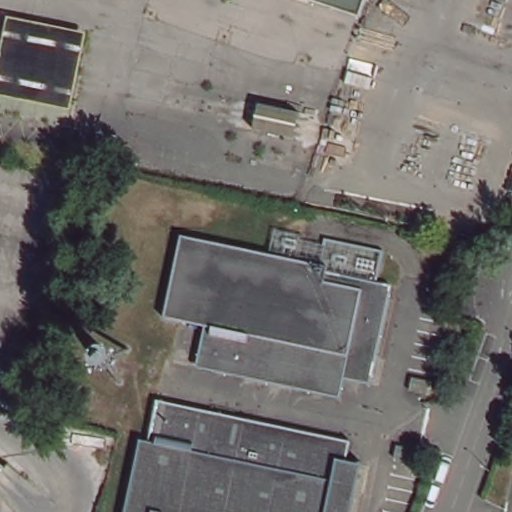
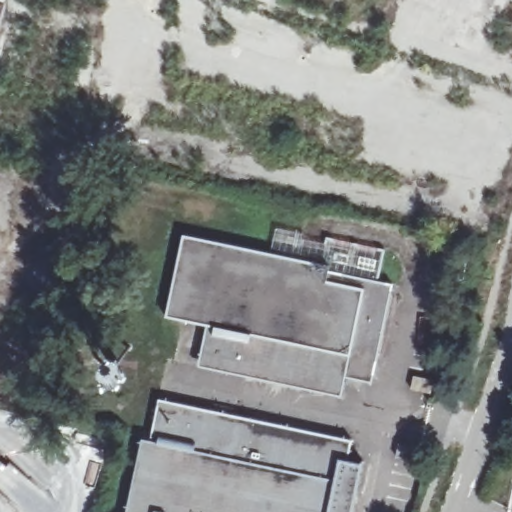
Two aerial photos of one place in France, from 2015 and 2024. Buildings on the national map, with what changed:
demolished [(364,20),(306,0),(371,0),(364,20)]
demolished [(12,17),(92,32),(80,110),(0,97),(0,74),(12,17)]
demolished [(305,114),(299,145),(255,136),(261,106),(305,114)]
unchanged [(331,238),(390,251),(380,286),(330,274),(330,270),(325,268),(331,238)]
unchanged [(345,380),(340,399),(214,372),(215,366),(200,362),(207,327),(165,318),(185,239),(325,268),(330,270),(330,274),(380,286),(392,288),(377,359),(372,385),(345,380)]
unchanged [(435,382),(432,396),(413,391),(415,377),(435,382)]
unchanged [(128,507),(142,440),(150,442),(158,407),(172,410),(174,405),(352,442),(348,462),(363,466),(357,493),(353,512),(143,512),(143,511),(128,507)]
unchanged [(398,447),(419,451),(416,463),(395,460),(398,447)]

